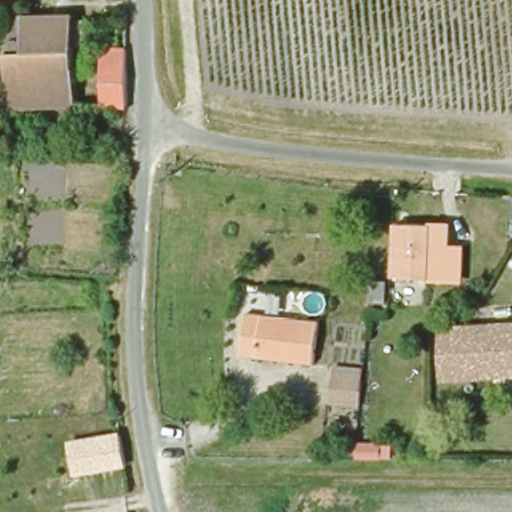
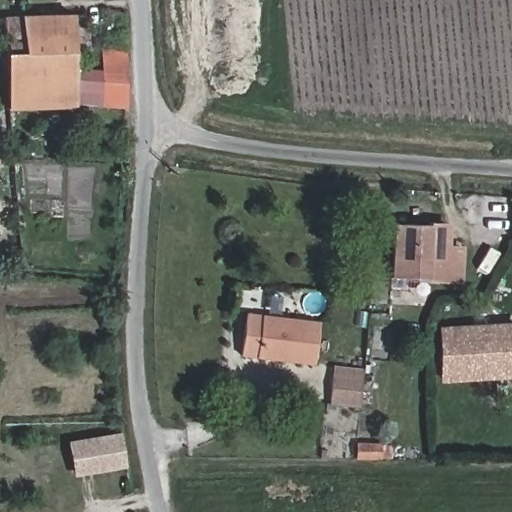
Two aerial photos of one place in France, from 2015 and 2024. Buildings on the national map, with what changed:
unchanged [(14,51),(14,40),(11,40),(11,37),(10,16),(27,17),(77,15),(79,106),(39,106),(11,107),(9,52),(14,51)]
unchanged [(103,105),(104,46),(126,47),(127,106),(103,105)]
unchanged [(452,229),(451,251),(466,252),(464,284),(408,280),(395,279),(400,226),(452,229)]
unchanged [(317,366),(242,356),(247,311),(322,321),(317,366)]
unchanged [(512,326),(512,373),(440,374),(440,327),(512,326)]
unchanged [(328,403),(332,372),(333,367),(362,371),(361,376),(357,407),(328,403)]
unchanged [(75,476),(70,441),(124,434),(128,467),(75,476)]

